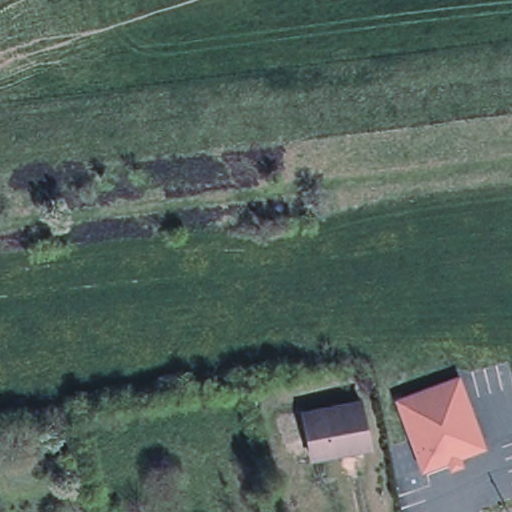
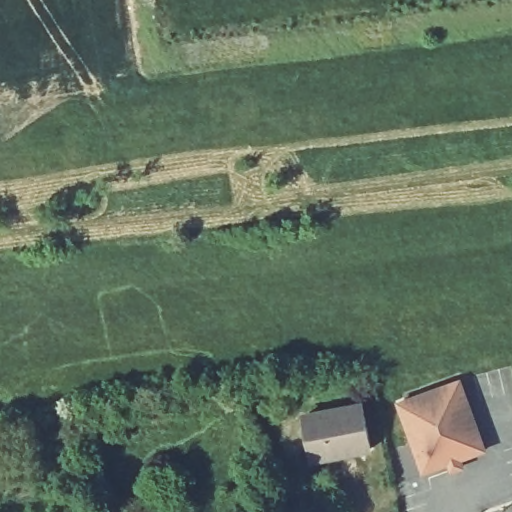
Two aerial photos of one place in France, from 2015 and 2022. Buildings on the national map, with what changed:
unchanged [(463,471),(460,464),(435,473),(409,404),(470,381),(497,451),(471,460),(473,468),(463,471)]
unchanged [(363,406),(372,450),(313,462),(305,417),(363,406)]

